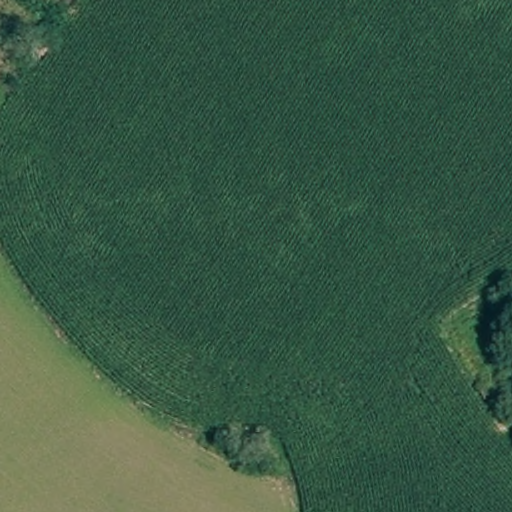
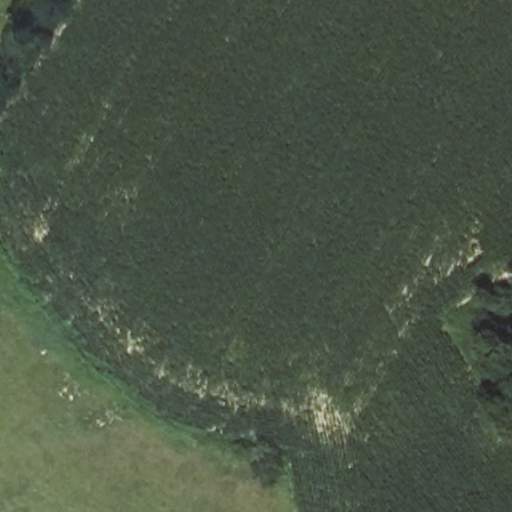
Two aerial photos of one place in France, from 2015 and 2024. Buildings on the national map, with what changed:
[]

